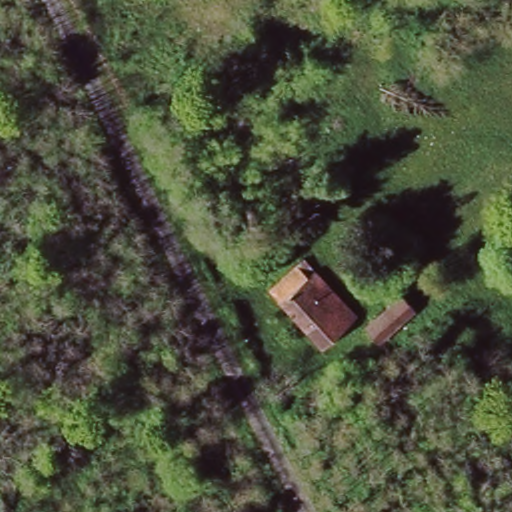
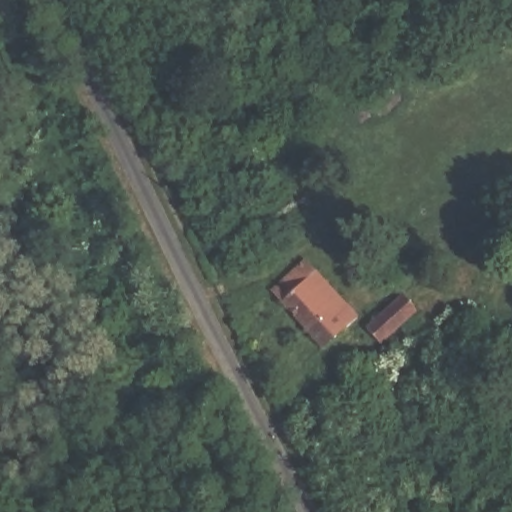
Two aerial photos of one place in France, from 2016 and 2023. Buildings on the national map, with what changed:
unchanged [(324,351),(272,295),(305,264),(356,320),(324,351)]
unchanged [(413,311),(376,341),(363,327),(400,296),(413,311)]

